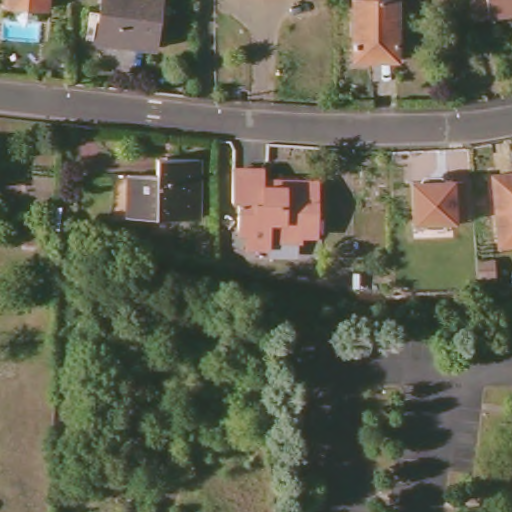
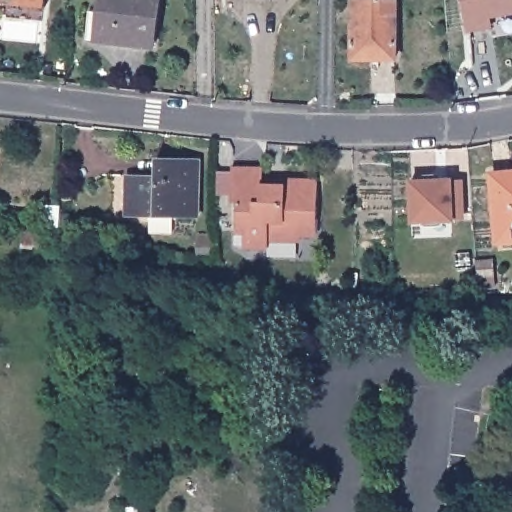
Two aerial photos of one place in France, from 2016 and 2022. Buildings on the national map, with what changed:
unchanged [(0,0),(39,0),(38,5),(0,1),(0,0)]
unchanged [(110,41),(113,14),(95,11),(96,0),(155,0),(151,46),(110,41)]
unchanged [(396,1),(397,60),(353,61),(354,0),(396,1)]
unchanged [(471,14),(469,0),(512,0),(512,8),(471,14)]
unchanged [(199,159),(198,217),(129,217),(130,175),(154,175),(154,158),(199,159)]
unchanged [(262,166),(261,179),(261,187),(273,187),(273,182),(284,182),(285,178),(316,179),(316,214),(301,213),(301,233),(301,237),(266,236),(266,242),(246,244),(246,227),(236,228),(236,198),(231,197),(231,166),(262,166)]
unchanged [(494,242),(492,173),(512,172),(512,241),(494,242)]
unchanged [(462,179),(464,219),(454,220),(414,222),(412,182),(452,179),(462,179)]
unchanged [(63,208),(62,232),(49,228),(50,208),(63,208)]
unchanged [(146,395),(148,425),(101,429),(102,394),(146,395)]

